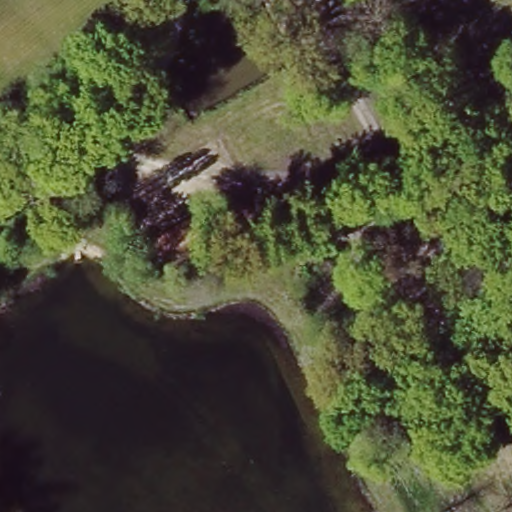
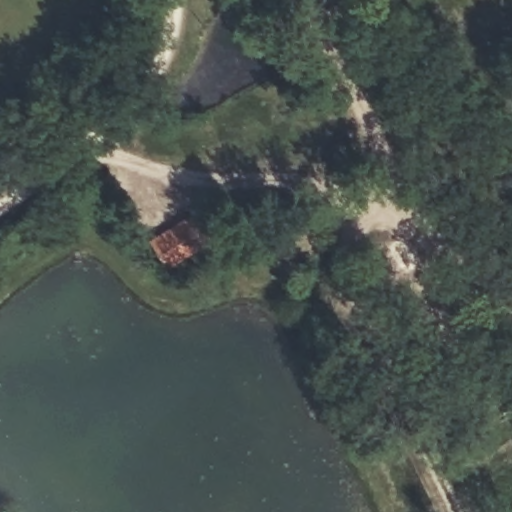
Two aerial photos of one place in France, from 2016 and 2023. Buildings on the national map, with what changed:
unchanged [(149,240),(190,212),(213,246),(171,275),(149,240)]

